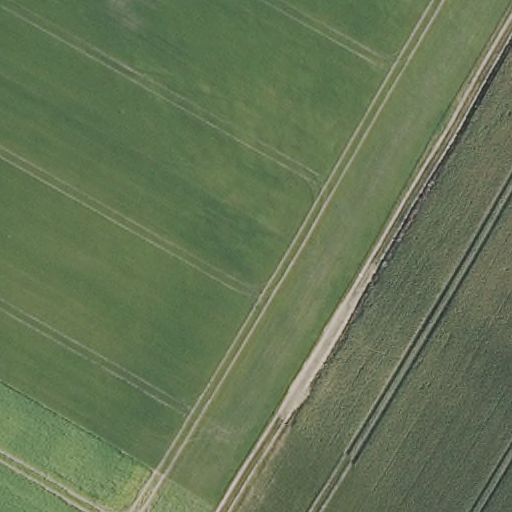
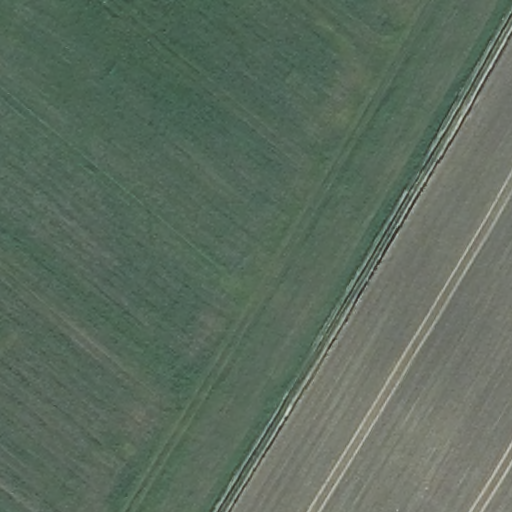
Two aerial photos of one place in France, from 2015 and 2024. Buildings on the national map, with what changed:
[]

